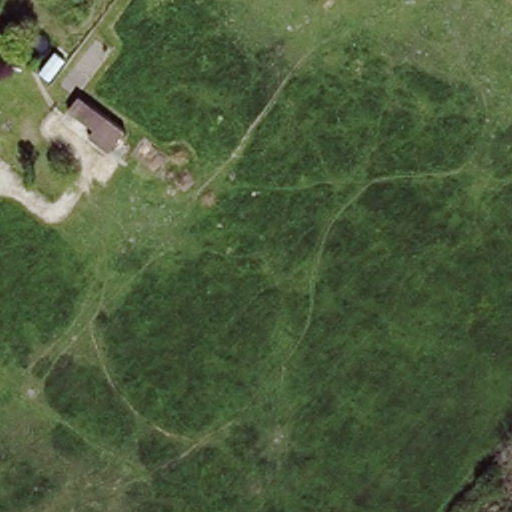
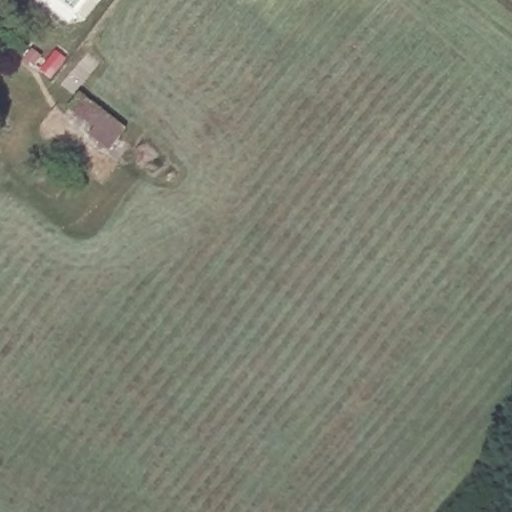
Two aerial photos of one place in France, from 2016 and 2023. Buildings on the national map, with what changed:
unchanged [(74,93),(120,126),(107,143),(63,109),(74,93)]

